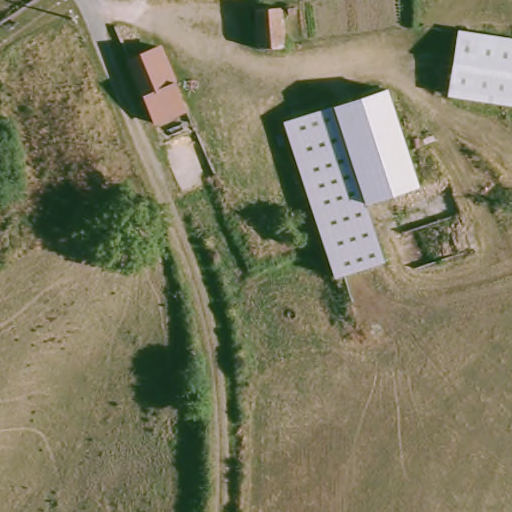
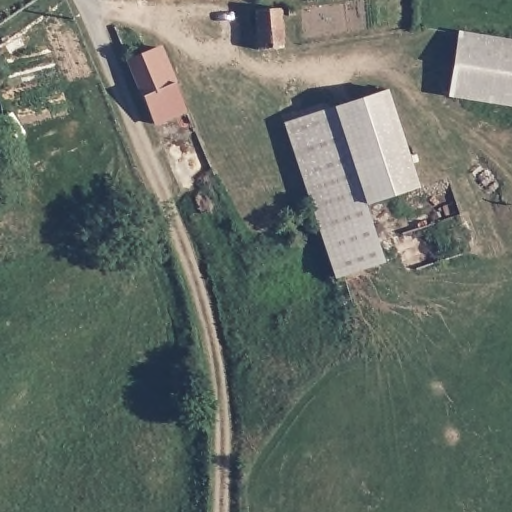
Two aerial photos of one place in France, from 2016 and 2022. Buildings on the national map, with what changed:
unchanged [(279,9),(282,61),(260,63),(257,10),(279,9)]
unchanged [(512,42),(512,102),(450,93),(455,34),(512,42)]
unchanged [(161,52),(185,112),(153,124),(128,64),(161,52)]
unchanged [(334,110),(380,92),(413,184),(365,202),(334,110)]
unchanged [(365,202),(384,259),(333,277),(282,129),(334,110),(365,202)]

